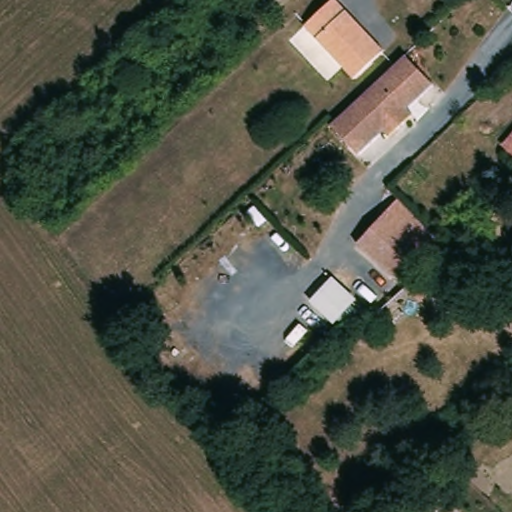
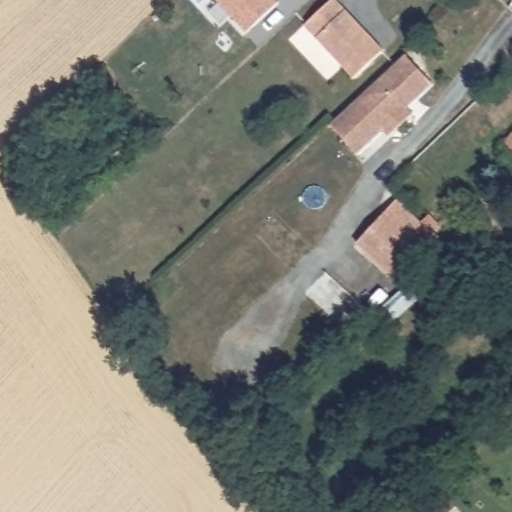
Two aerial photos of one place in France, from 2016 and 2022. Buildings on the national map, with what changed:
new [(277,0),(278,1),(245,32),(216,0),(277,0)]
unchanged [(340,0),(387,50),(357,78),(308,24),(334,0),(340,0)]
unchanged [(343,143),(326,124),(398,56),(400,54),(418,73),(428,83),(402,106),(408,113),(385,135),(378,129),(353,153),(343,143)]
unchanged [(507,147),(512,142),(512,151),(507,147)]
unchanged [(356,243),(397,198),(447,251),(422,276),(431,288),(418,299),(356,243)]

